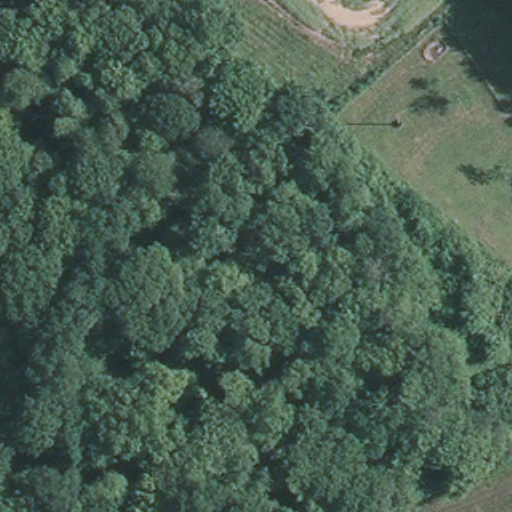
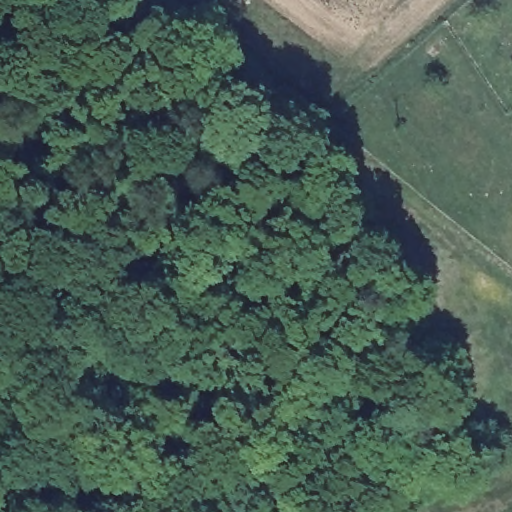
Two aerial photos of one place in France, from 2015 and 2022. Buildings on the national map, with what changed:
[]

